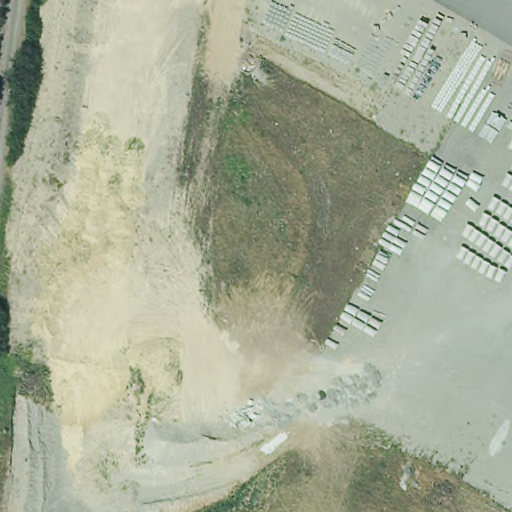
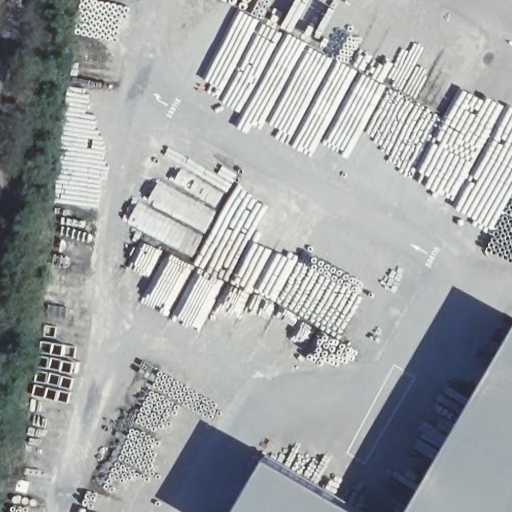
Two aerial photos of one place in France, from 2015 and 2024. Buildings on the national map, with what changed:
new [(407,512),(512,333),(512,512),(407,512)]
new [(233,512),(266,455),(362,512),(233,512)]

